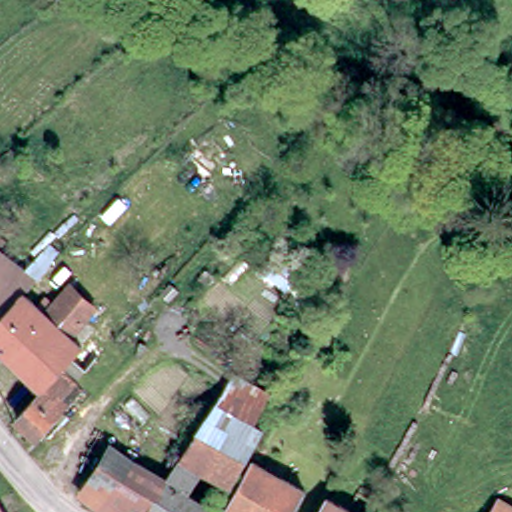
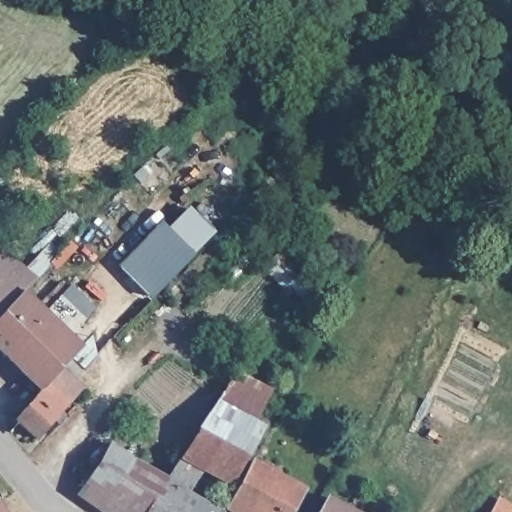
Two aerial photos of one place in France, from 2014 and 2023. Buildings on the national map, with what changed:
new [(151,300),(118,267),(161,222),(196,255),(151,300)]
unchanged [(21,266),(48,235),(61,246),(33,277),(21,290),(0,315),(0,249),(21,266)]
unchanged [(326,286),(309,303),(267,263),(284,246),(326,286)]
unchanged [(43,309),(57,292),(50,286),(61,275),(91,305),(66,331),(78,342),(61,361),(41,385),(0,345),(0,315),(21,290),(43,309)]
unchanged [(76,375),(61,392),(67,398),(61,405),(66,410),(57,420),(52,415),(35,435),(18,417),(61,361),(76,375)]
unchanged [(246,423),(257,430),(224,486),(196,468),(191,476),(183,472),(173,489),(208,512),(141,512),(166,473),(176,455),(193,430),(215,393),(217,390),(226,376),(234,363),(262,390),(246,423)]
unchanged [(141,512),(96,512),(74,493),(87,473),(106,443),(128,455),(166,473),(141,512)]
unchanged [(269,466),(266,472),(297,492),(287,512),(226,512),(221,508),(246,460),(260,468),(264,463),(269,466)]
unchanged [(324,495),(354,512),(315,512),(324,495)]
unchanged [(494,505),(509,512),(490,512),(494,505)]

